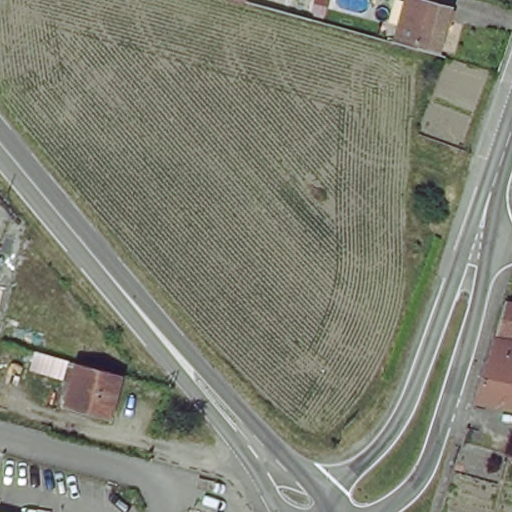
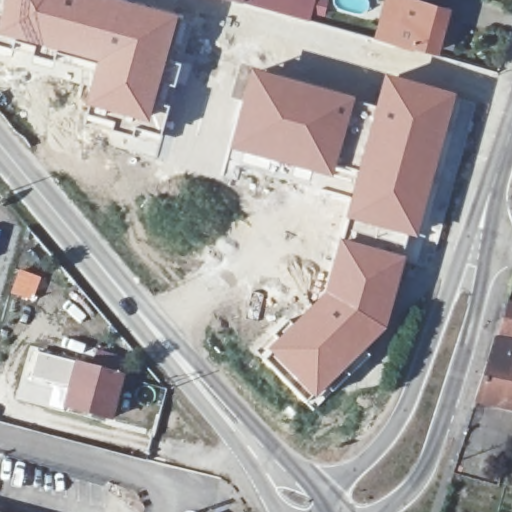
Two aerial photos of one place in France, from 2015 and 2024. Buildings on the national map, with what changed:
new [(181,10),(169,57),(183,60),(176,86),(165,82),(160,97),(172,101),(163,132),(140,126),(137,132),(87,116),(90,103),(87,102),(95,61),(0,33),(0,16),(1,12),(0,12),(0,0),(146,0),(181,10)]
unchanged [(239,0),(250,0),(250,3),(239,0)]
new [(323,17),(310,13),(308,20),(250,3),(250,0),(328,0),(323,17)]
unchanged [(397,45),(409,0),(420,0),(452,8),(441,52),(419,46),(418,50),(397,45)]
new [(245,67),(353,98),(330,182),(255,162),(225,152),(245,67)]
new [(361,137),(381,74),(454,95),(415,240),(340,220),(361,137)]
new [(277,335),(311,303),(320,292),(336,239),(403,257),(383,328),(331,385),(311,405),(262,352),(277,335)]
new [(18,268),(41,277),(30,302),(9,293),(18,268)]
unchanged [(512,313),(512,343),(494,340),(503,311),(512,313)]
unchanged [(494,340),(512,343),(512,405),(476,397),(494,340)]
demolished [(32,357),(35,358),(71,367),(68,378),(29,369),(32,357)]
unchanged [(80,370),(125,381),(115,422),(71,410),(80,370)]

